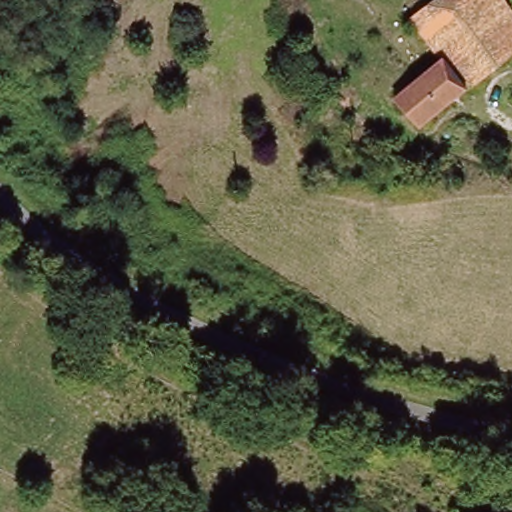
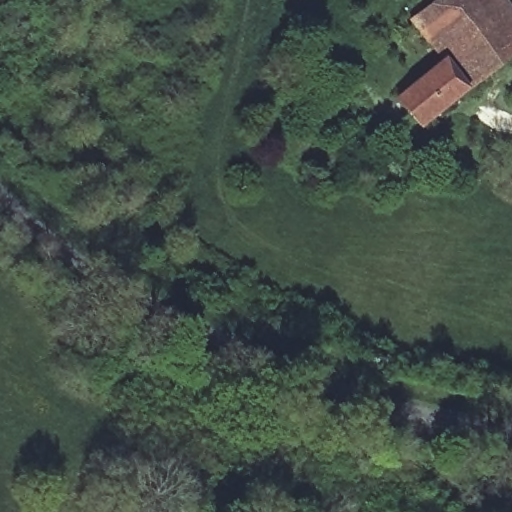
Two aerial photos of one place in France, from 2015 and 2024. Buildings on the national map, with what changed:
unchanged [(507,0),(512,7),(512,50),(471,83),(445,49),(437,55),(410,18),(434,0),(507,0)]
unchanged [(437,55),(445,49),(471,83),(466,86),(426,120),(420,125),(395,92),(437,55)]

